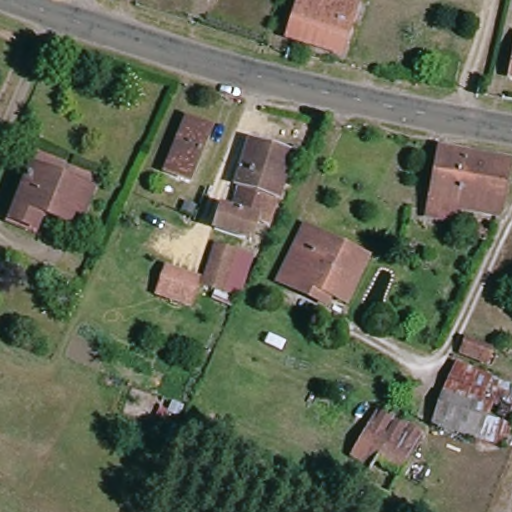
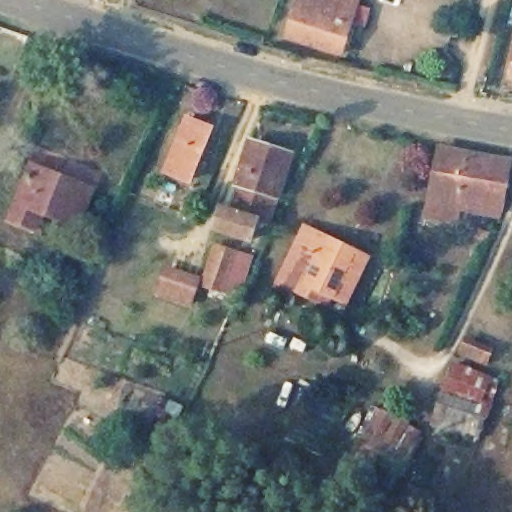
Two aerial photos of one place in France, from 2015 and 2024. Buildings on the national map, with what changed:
unchanged [(353,6),(337,55),(287,40),(299,0),(335,0),(353,6)]
unchanged [(512,55),(512,79),(508,78),(512,55)]
unchanged [(182,122),(206,131),(185,181),(162,172),(182,122)]
unchanged [(228,235),(220,232),(227,210),(236,213),(245,187),(241,186),(256,142),(298,157),(276,225),(263,222),(256,243),(246,240),(242,253),(258,258),(245,297),(212,286),(228,235)]
unchanged [(425,217),(426,210),(437,148),(507,161),(496,216),(455,210),(453,215),(452,223),(425,217)]
unchanged [(95,182),(80,220),(44,206),(38,220),(12,210),(34,158),(95,182)]
unchanged [(294,285),(278,277),(302,230),(305,224),(353,247),(368,255),(347,298),(332,291),(327,301),(294,285)]
unchanged [(482,241),(473,237),(476,231),(485,234),(482,241)]
unchanged [(411,235),(411,241),(403,241),(403,234),(411,235)]
unchanged [(196,306),(165,296),(174,271),(204,282),(196,306)]
unchanged [(460,341),(492,352),(487,365),(455,354),(460,341)]
unchanged [(455,360),(512,383),(510,388),(512,389),(512,409),(478,397),(485,378),(451,366),(455,360)]
unchanged [(475,441),(430,424),(451,366),(485,378),(478,397),(512,409),(512,437),(507,449),(476,438),(475,441)]
unchanged [(418,436),(396,475),(368,458),(363,466),(350,456),(376,412),(391,421),(393,416),(403,422),(401,426),(412,432),(418,436)]

